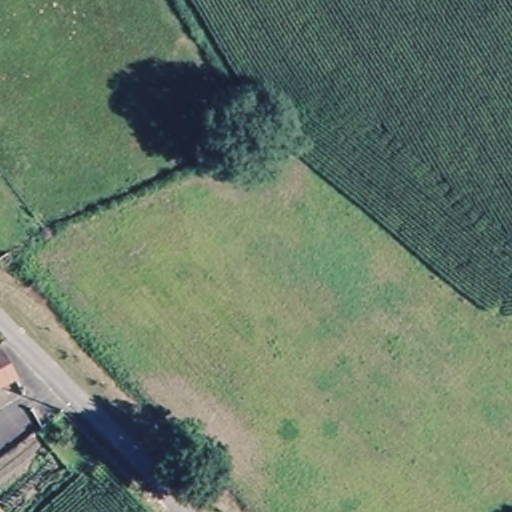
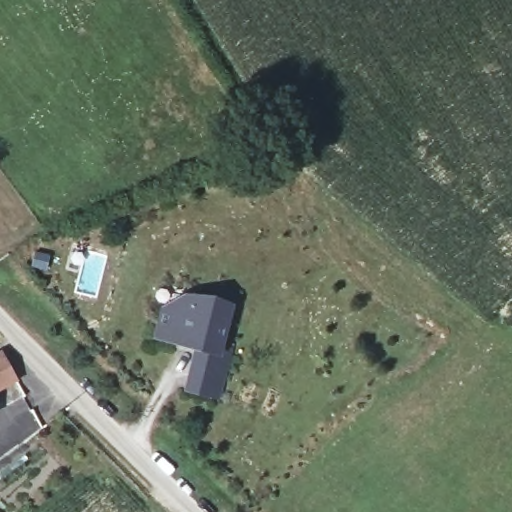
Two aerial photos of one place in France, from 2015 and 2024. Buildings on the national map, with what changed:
new [(219,356),(201,351),(200,352),(153,339),(161,307),(183,295),(233,304),(219,356)]
new [(200,352),(201,351),(219,356),(221,348),(234,351),(222,399),(185,390),(196,351),(200,352)]
unchanged [(0,393),(0,355),(9,351),(25,378),(0,393)]
unchanged [(0,412),(0,399),(5,409),(0,412)]

